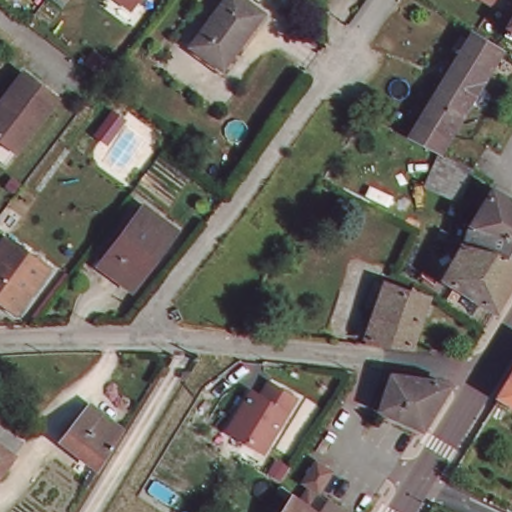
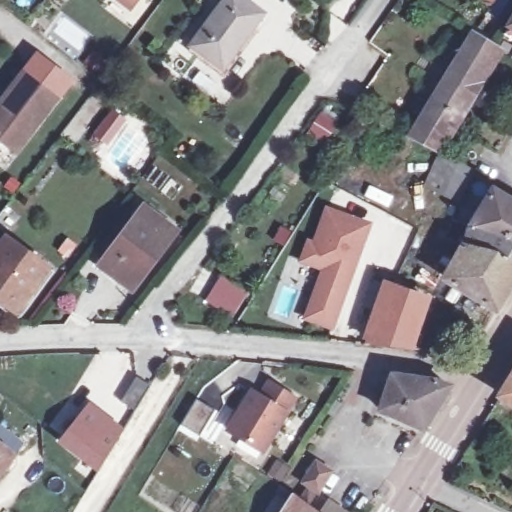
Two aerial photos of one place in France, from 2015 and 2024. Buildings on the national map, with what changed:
unchanged [(131,12),(114,0),(141,0),(131,12)]
unchanged [(220,70),(188,45),(221,0),(237,0),(259,16),(220,70)]
unchanged [(491,2),(487,0),(492,0),(491,2)]
unchanged [(477,38),(488,20),(495,24),(509,32),(512,34),(512,40),(504,54),(500,60),(454,134),(452,138),(445,150),(418,136),(426,123),(429,118),(477,38)]
unchanged [(20,74),(55,100),(14,152),(0,142),(0,100),(20,74)]
unchanged [(434,180),(448,155),(464,163),(466,160),(482,169),(479,173),(467,197),(434,180)]
unchanged [(492,187),(512,199),(512,245),(473,223),(492,187)]
new [(373,222),(333,330),(301,320),(319,269),(299,263),(307,237),(314,239),(324,206),(373,222)]
unchanged [(116,280),(120,275),(103,262),(145,208),(176,232),(138,282),(131,291),(116,280)]
unchanged [(473,223),(512,245),(512,270),(466,243),(465,242),(473,223)]
unchanged [(0,306),(0,244),(4,239),(45,272),(14,309),(10,314),(0,306)]
unchanged [(466,243),(512,270),(512,286),(494,316),(444,286),(466,243)]
new [(221,271),(251,289),(232,319),(201,297),(221,271)]
unchanged [(383,280),(415,299),(396,335),(361,330),(383,280)]
unchanged [(299,394),(266,450),(222,419),(246,383),(253,387),(261,371),(299,394)]
unchanged [(381,410),(402,375),(433,381),(446,387),(418,434),(381,410)]
unchanged [(512,380),(512,414),(497,405),(512,380)]
unchanged [(79,410),(118,435),(96,471),(55,445),(79,410)]
unchanged [(0,474),(0,443),(15,453),(0,474)]
unchanged [(274,492),(279,496),(289,504),(293,508),(300,496),(294,492),(306,473),(321,483),(302,512),(284,512),(284,511),(269,499),(274,492)]
unchanged [(319,512),(309,512),(313,507),(319,512)]

